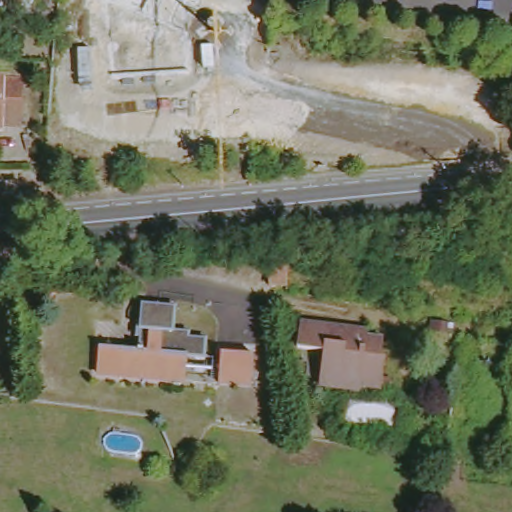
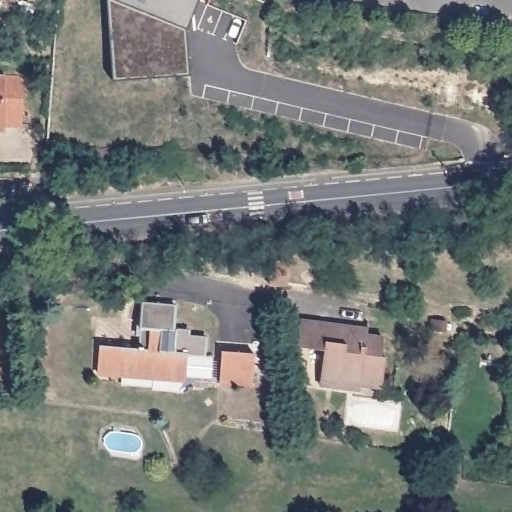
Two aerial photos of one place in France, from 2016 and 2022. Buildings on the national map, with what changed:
new [(108,0),(198,0),(187,30),(187,74),(113,80),(108,0)]
demolished [(220,40),(130,0),(234,0),(238,1),(220,40)]
unchanged [(4,133),(0,133),(0,80),(24,81),(22,134),(4,133)]
unchanged [(272,263),(287,262),(290,290),(274,287),(272,263)]
unchanged [(103,348),(151,351),(151,330),(145,330),(146,306),(182,307),(178,332),(212,337),(210,356),(195,355),(192,381),(99,381),(103,348)]
unchanged [(304,324),(355,332),(355,338),(386,343),(385,361),(390,363),(384,395),(322,386),(328,356),(300,352),(304,324)]
unchanged [(225,355),(260,355),(255,389),(224,386),(225,355)]

